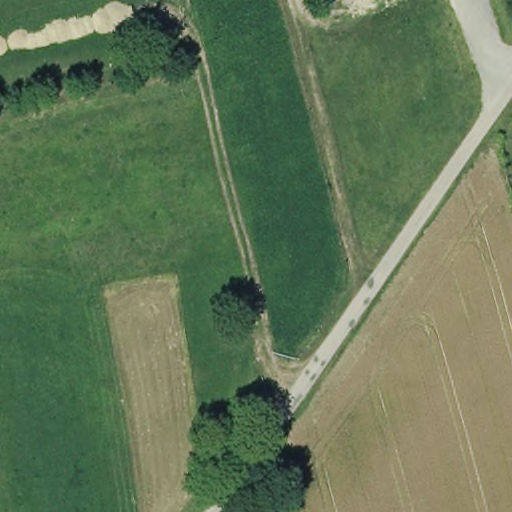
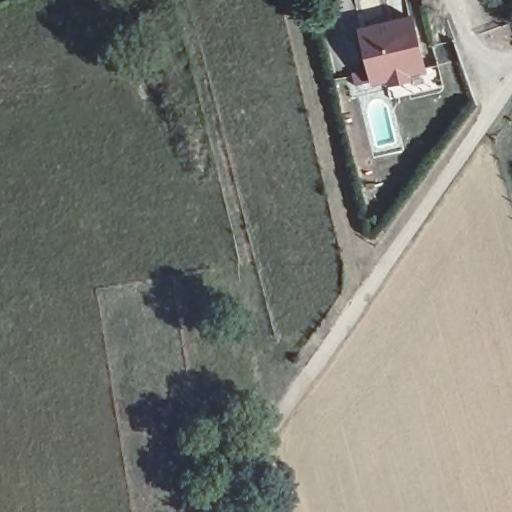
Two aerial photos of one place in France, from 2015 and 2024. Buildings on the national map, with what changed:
new [(427,71),(412,75),(412,79),(389,85),(387,81),(372,85),(357,27),(412,12),(427,71)]

